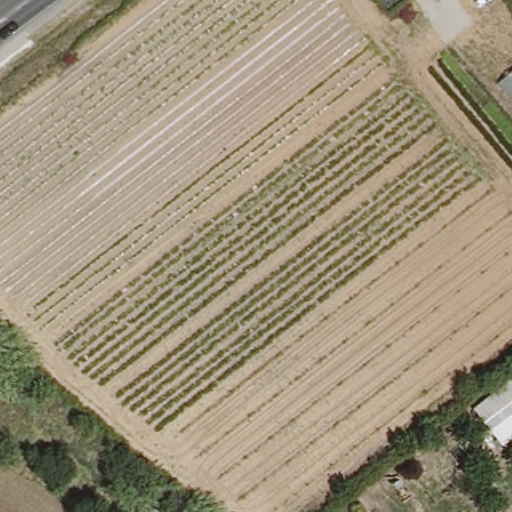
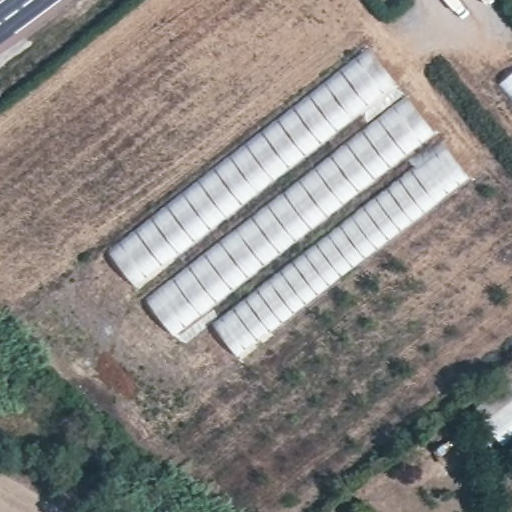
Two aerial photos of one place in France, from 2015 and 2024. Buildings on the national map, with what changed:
new [(469,182),(232,362),(204,326),(179,344),(110,252),(366,52),(469,182)]
unchanged [(494,86),(512,72),(512,106),(494,86)]
unchanged [(512,379),(512,380),(512,427),(496,437),(475,410),(512,379)]

